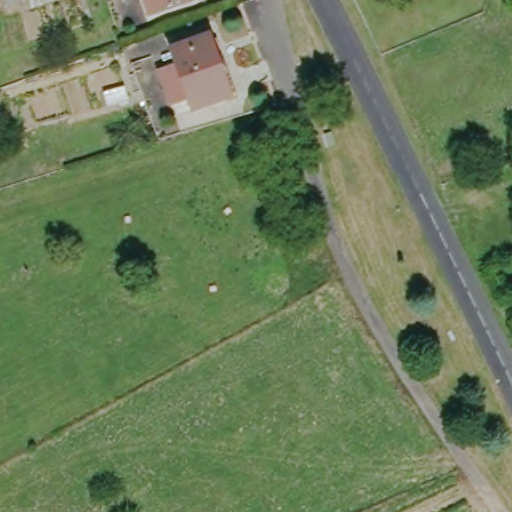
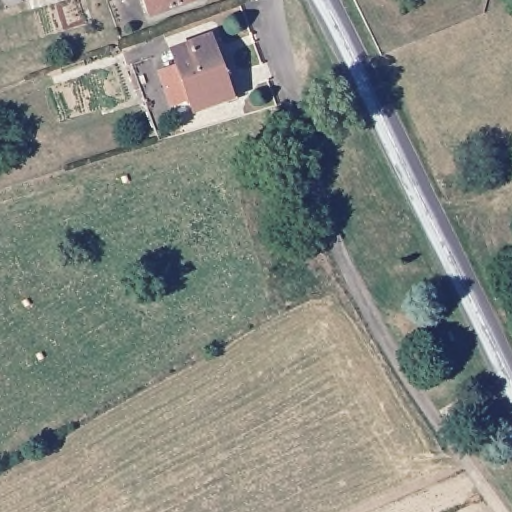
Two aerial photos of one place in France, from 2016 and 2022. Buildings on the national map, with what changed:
unchanged [(0,12),(0,0),(8,0),(11,6),(0,12)]
unchanged [(145,16),(140,0),(192,0),(193,3),(145,16)]
unchanged [(219,74),(216,75),(225,102),(188,114),(185,103),(168,108),(158,76),(174,71),(169,53),(207,40),(219,74)]

